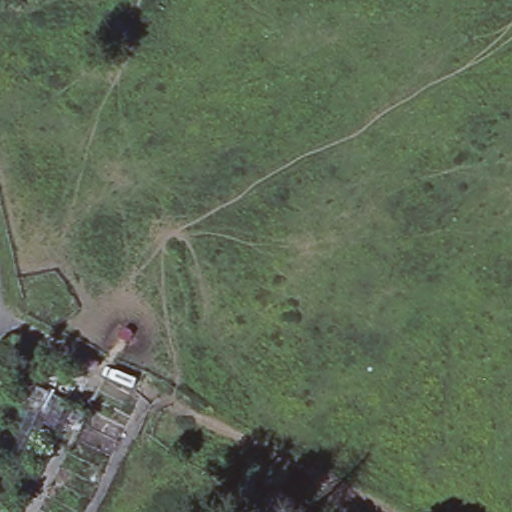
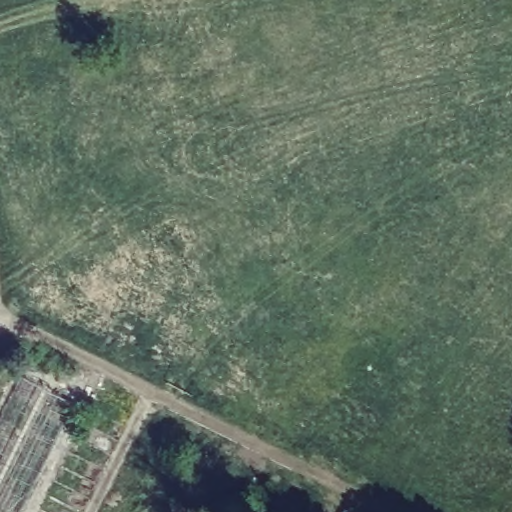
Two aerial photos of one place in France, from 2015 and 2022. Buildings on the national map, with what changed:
unchanged [(35,512),(0,512),(0,442),(13,415),(31,382),(86,410),(35,512)]

